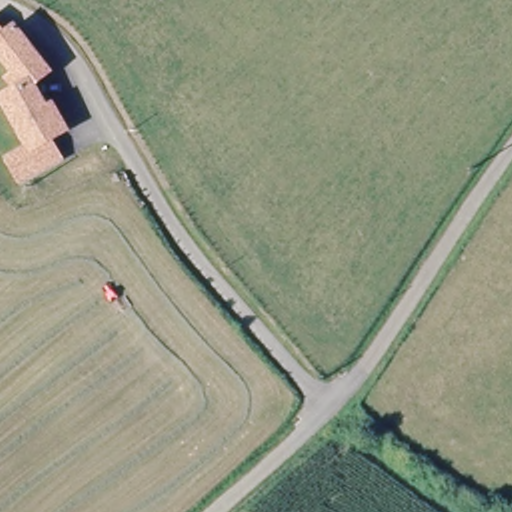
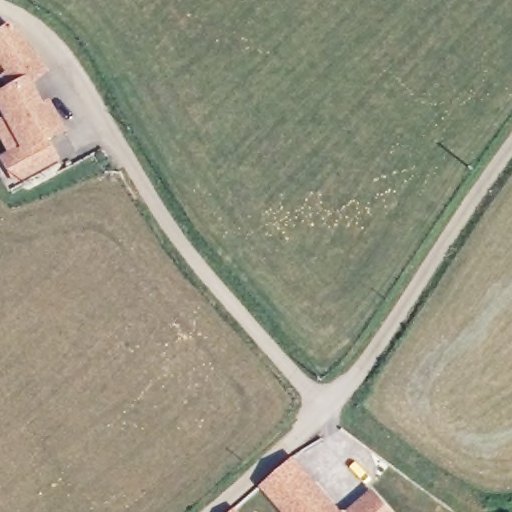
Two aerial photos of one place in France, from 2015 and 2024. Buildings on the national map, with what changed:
unchanged [(4,37),(0,40),(0,31),(4,37)]
unchanged [(27,84),(16,90),(0,58),(0,46),(20,34),(55,71),(27,84)]
unchanged [(16,90),(27,84),(45,119),(56,113),(67,133),(28,152),(0,100),(0,99),(16,90)]
unchanged [(21,145),(25,154),(52,141),(60,159),(14,184),(0,157),(0,155),(21,145)]
new [(260,489),(296,461),(342,512),(281,512),(260,489)]
new [(371,489),(392,512),(346,512),(371,489)]

